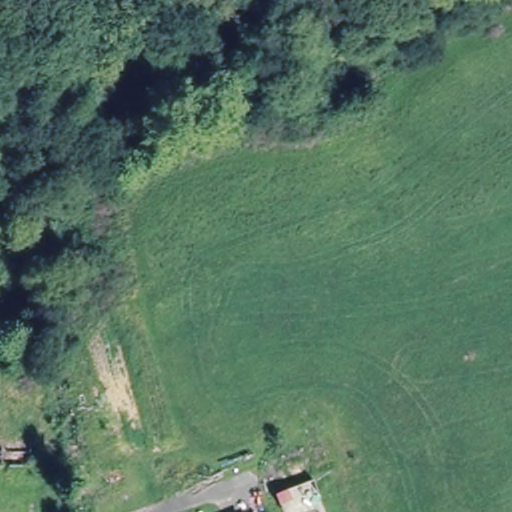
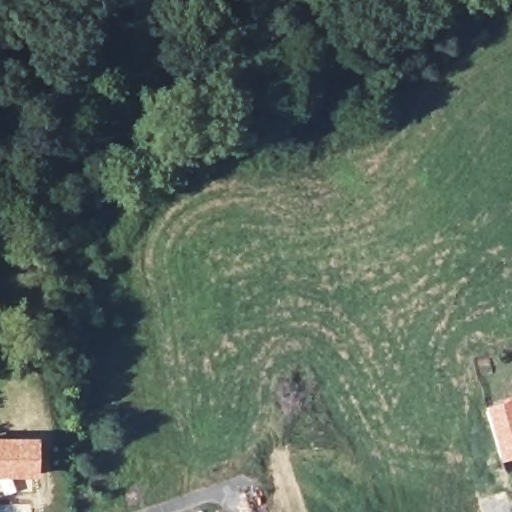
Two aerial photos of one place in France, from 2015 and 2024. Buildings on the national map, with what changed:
new [(512,460),(501,463),(485,407),(512,399),(512,460)]
new [(39,437),(38,479),(0,478),(0,437),(39,437)]

